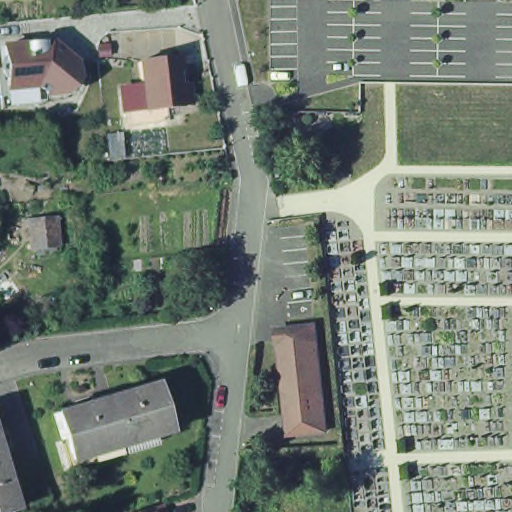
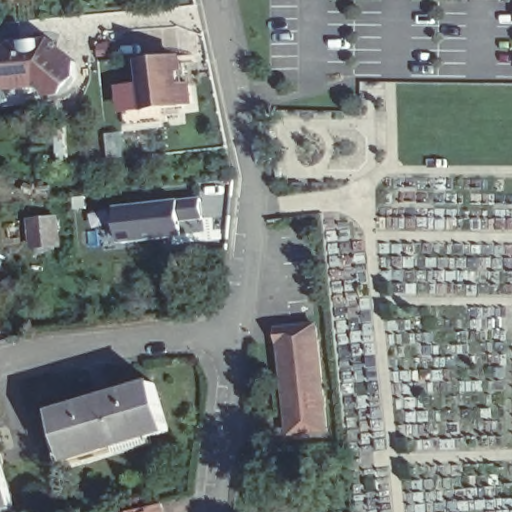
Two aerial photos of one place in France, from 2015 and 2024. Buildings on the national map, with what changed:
unchanged [(50,42),(75,62),(77,78),(64,94),(50,95),(37,86),(17,88),(8,80),(5,46),(50,42)]
unchanged [(178,54),(181,80),(191,80),(193,101),(167,105),(145,106),(142,84),(140,58),(178,54)]
new [(203,219),(181,221),(182,237),(120,245),(115,207),(177,201),(201,199),(203,219)]
unchanged [(56,220),(58,246),(35,248),(32,222),(56,220)]
unchanged [(332,425),(295,430),(285,336),(295,335),(293,325),(321,321),(332,425)]
unchanged [(163,379),(177,427),(160,432),(77,457),(71,436),(62,409),(163,379)]
unchanged [(0,508),(0,451),(15,503),(0,508)]
unchanged [(142,511),(162,504),(165,512),(139,512),(142,511)]

